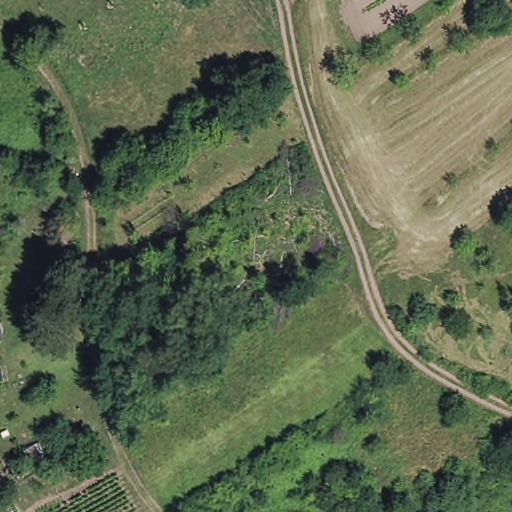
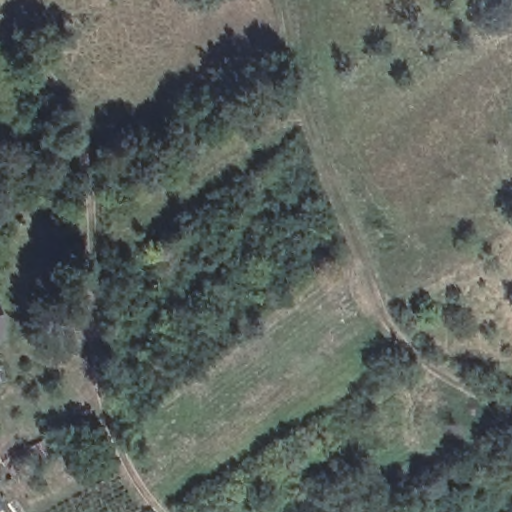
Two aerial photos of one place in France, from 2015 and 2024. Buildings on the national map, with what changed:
unchanged [(0,328),(0,317),(4,326),(0,328)]

